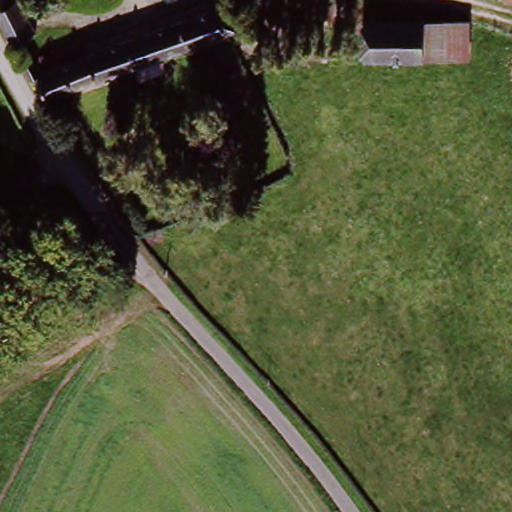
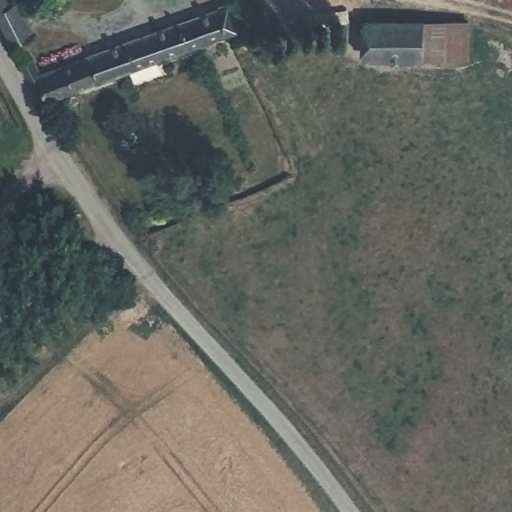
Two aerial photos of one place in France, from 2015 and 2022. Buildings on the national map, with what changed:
unchanged [(0,46),(0,0),(3,0),(5,5),(12,2),(27,34),(0,46)]
unchanged [(512,2),(497,6),(495,0),(512,0),(512,2)]
unchanged [(17,65),(33,58),(41,74),(219,12),(229,35),(42,106),(17,65)]
unchanged [(463,15),(465,58),(437,59),(422,59),(422,22),(437,20),(463,15)]
unchanged [(375,59),(373,22),(422,22),(422,59),(375,59)]

